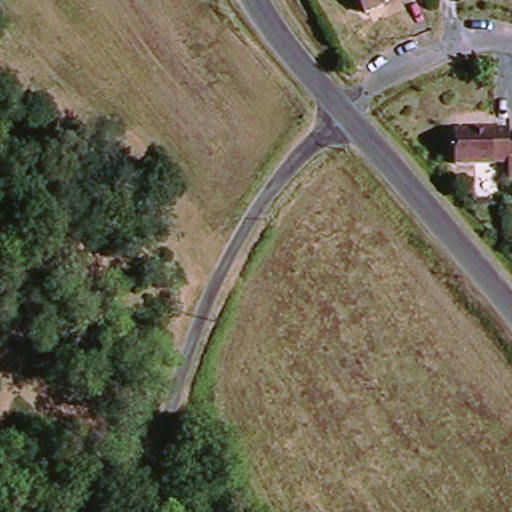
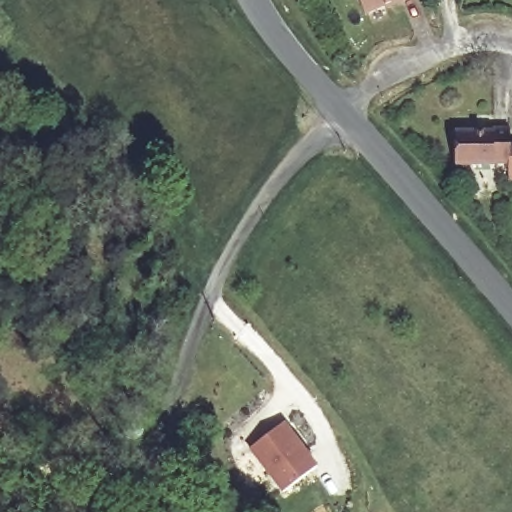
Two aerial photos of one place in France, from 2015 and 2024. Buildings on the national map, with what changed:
unchanged [(412,1),(397,8),(395,4),(360,17),(353,0),(412,0),(412,1)]
unchanged [(510,129),(510,145),(512,145),(512,180),(511,180),(511,167),(455,166),(457,134),(489,135),(489,128),(510,129)]
new [(285,425),(317,469),(284,494),(251,450),(285,425)]

